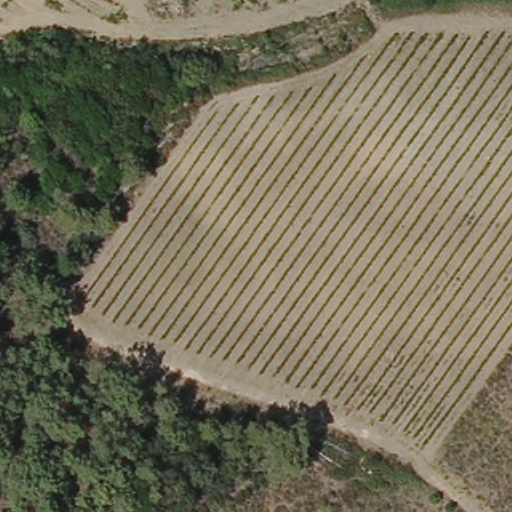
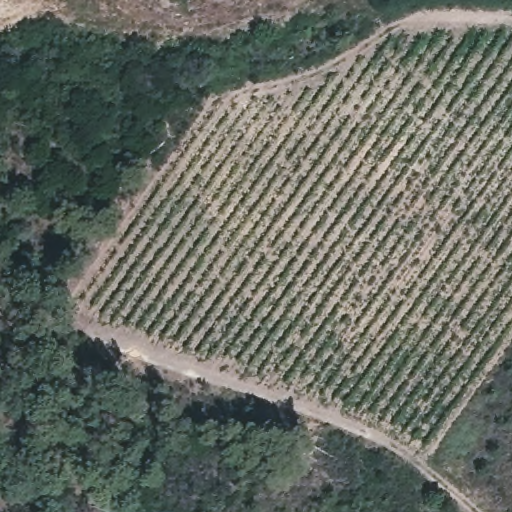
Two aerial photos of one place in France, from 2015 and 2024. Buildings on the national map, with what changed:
[]

